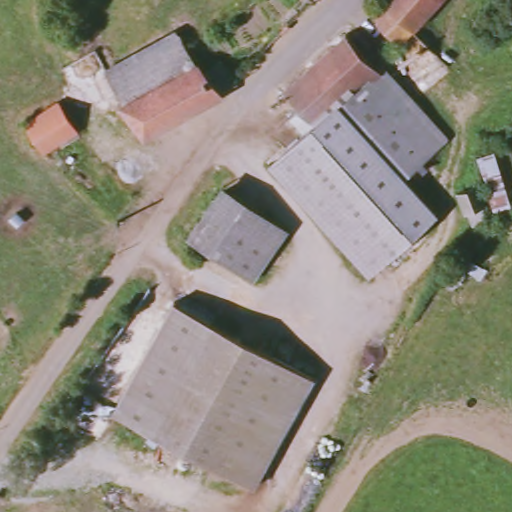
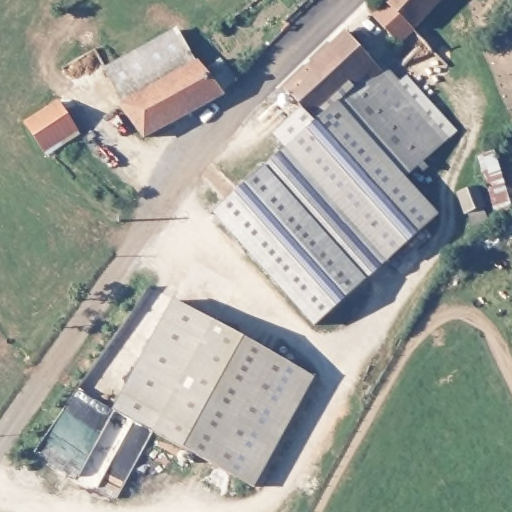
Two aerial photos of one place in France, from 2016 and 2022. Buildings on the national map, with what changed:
unchanged [(300,29),(296,25),(290,20),(311,0),(319,0),(325,5),(300,29)]
unchanged [(387,0),(445,0),(419,30),(415,26),(401,39),(375,11),(387,0)]
unchanged [(221,92),(222,96),(145,138),(126,105),(129,103),(106,70),(176,31),(202,76),(225,65),(237,81),(221,92)]
unchanged [(302,132),(289,118),(299,109),(281,91),(342,33),(370,64),(375,60),(446,137),(404,176),(437,212),(372,274),(268,164),(302,132)]
unchanged [(60,103),(77,131),(43,152),(26,124),(60,103)]
new [(372,274),(314,326),(212,213),(268,164),(372,274)]
unchanged [(475,186),(482,207),(481,207),(484,219),(470,224),(466,212),(461,214),(454,192),(475,186)]
unchanged [(154,432),(115,407),(175,299),(215,321),(154,432)]
unchanged [(154,432),(215,321),(321,380),(257,490),(154,432)]

